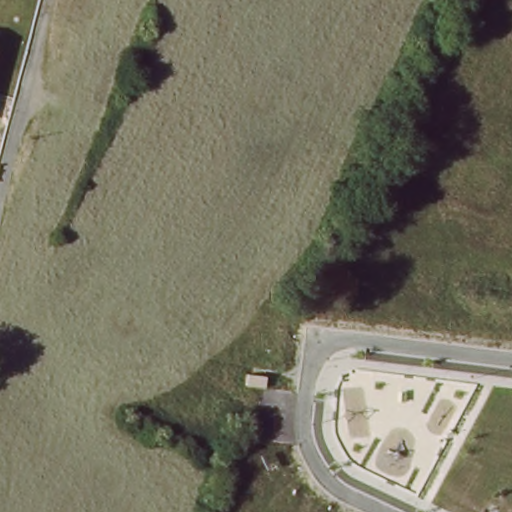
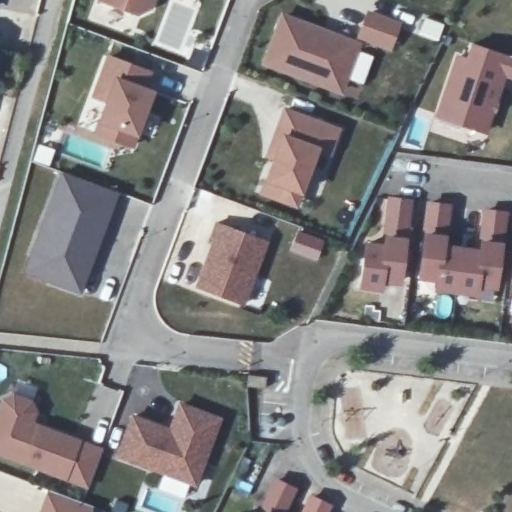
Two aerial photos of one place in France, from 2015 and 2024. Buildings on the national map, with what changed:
new [(138,15),(98,0),(156,0),(153,8),(138,15)]
new [(366,10),(402,23),(393,51),(358,38),(366,10)]
new [(280,12),(360,42),(341,94),(260,65),(280,12)]
new [(466,60),(472,43),(512,57),(512,75),(512,77),(502,73),(482,131),(436,116),(456,57),(466,60)]
new [(107,54),(153,71),(147,87),(155,89),(133,147),(93,133),(104,102),(91,97),(107,54)]
new [(277,144),(270,141),(284,107),(340,128),(330,156),(319,151),(297,207),(260,192),(277,144)]
new [(60,172),(117,192),(80,295),(23,273),(60,172)]
new [(381,246),(382,237),(383,229),(387,197),(406,200),(402,232),(401,239),(396,280),(378,278),(377,287),(357,284),(362,243),(381,246)]
new [(425,202),(444,205),(439,245),(477,250),(482,210),(501,212),(491,285),(474,282),(472,292),(433,286),(434,277),(416,275),(425,202)]
new [(212,239),(209,237),(214,222),(267,240),(245,306),(195,287),(212,239)]
new [(323,242),(317,260),(292,250),(298,233),(323,242)]
new [(512,278),(512,295),(510,295),(512,278)]
new [(11,392),(31,399),(37,411),(33,422),(100,447),(85,487),(0,454),(0,397),(11,392)]
new [(130,414),(169,426),(178,402),(221,417),(196,487),(115,456),(130,414)]
new [(258,507),(272,478),(289,486),(276,512),(255,512),(258,507)]
new [(39,511),(47,490),(91,507),(89,512),(37,512),(39,511)]
new [(306,495),(323,503),(319,512),(298,512),(306,495)]

